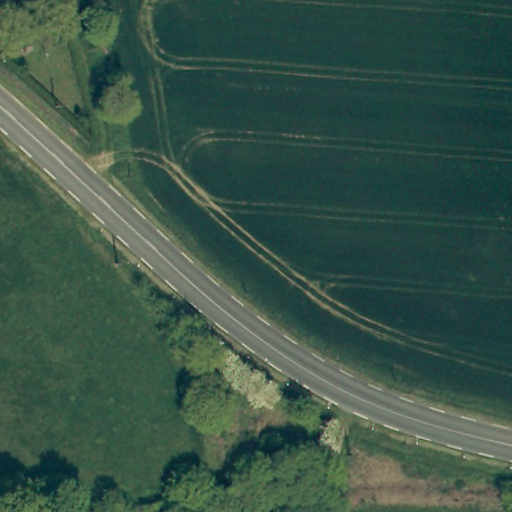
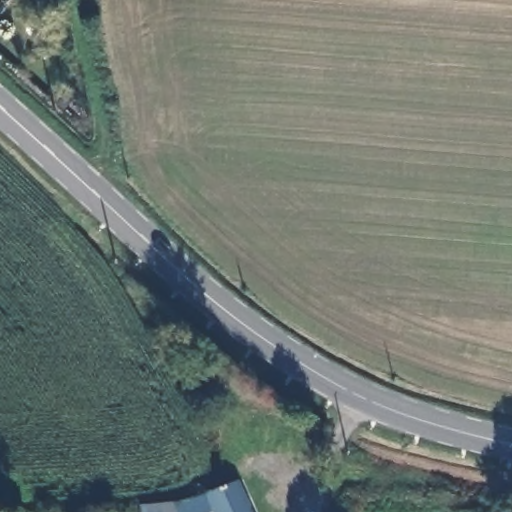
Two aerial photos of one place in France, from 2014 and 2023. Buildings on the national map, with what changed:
new [(196,500),(239,479),(254,512),(212,512),(178,512),(177,502),(196,500)]

